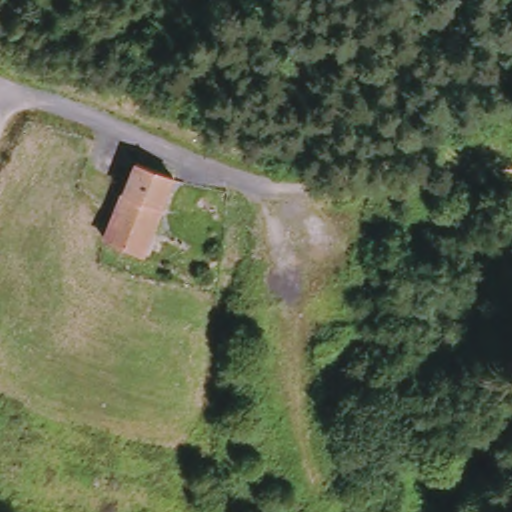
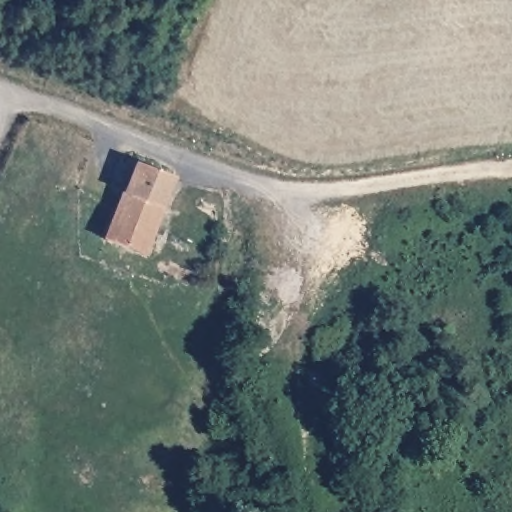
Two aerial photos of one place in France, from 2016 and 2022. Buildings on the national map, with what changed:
unchanged [(141,253),(105,239),(133,164),(171,176),(141,253)]

